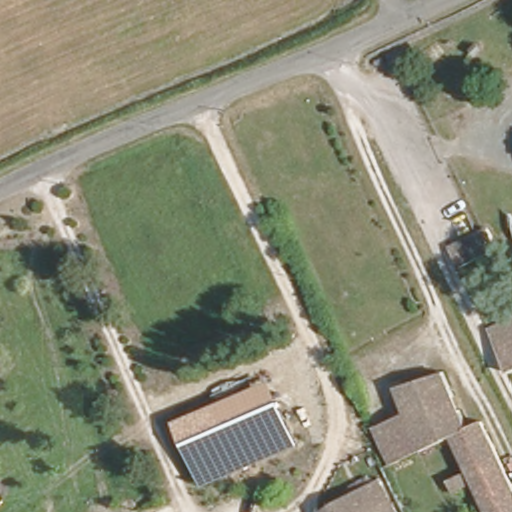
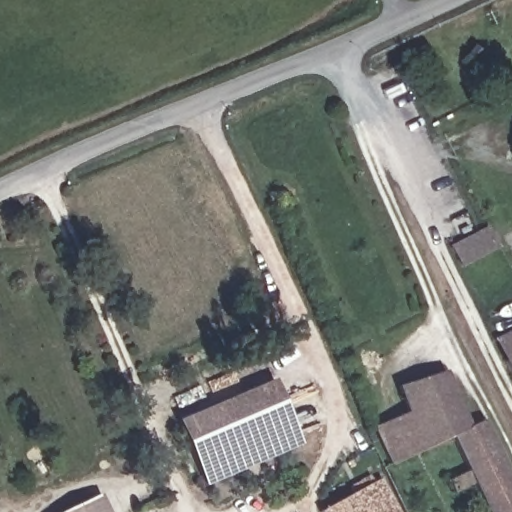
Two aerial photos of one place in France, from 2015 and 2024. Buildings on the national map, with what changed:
unchanged [(447,245),(483,228),(491,247),(455,264),(447,245)]
unchanged [(512,369),(505,372),(489,338),(512,327),(512,369)]
unchanged [(458,483),(452,473),(469,465),(453,434),(386,463),(368,427),(401,412),(389,388),(437,376),(461,429),(473,424),(512,507),(512,512),(491,512),(475,477),(458,483)]
unchanged [(300,444),(204,486),(177,421),(272,379),(300,444)]
unchanged [(373,478),(387,507),(390,506),(394,512),(319,512),(315,505),(373,478)]
new [(109,512),(61,512),(100,493),(109,512)]

